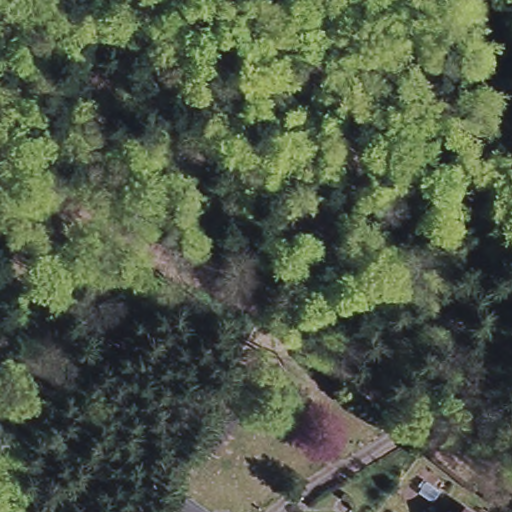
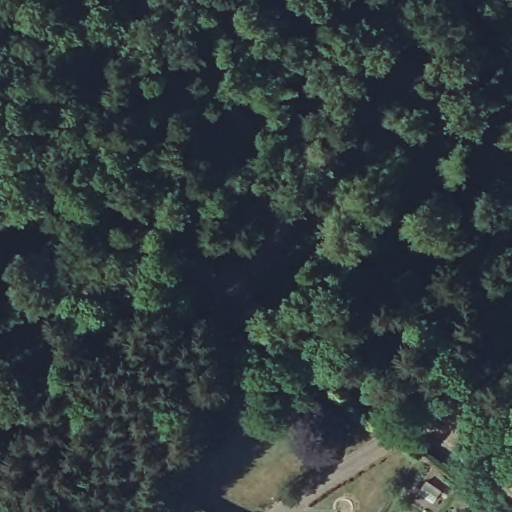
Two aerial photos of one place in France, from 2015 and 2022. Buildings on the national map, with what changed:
unchanged [(198,512),(177,512),(184,502),(198,512)]
unchanged [(472,512),(466,512),(467,509),(472,512)]

